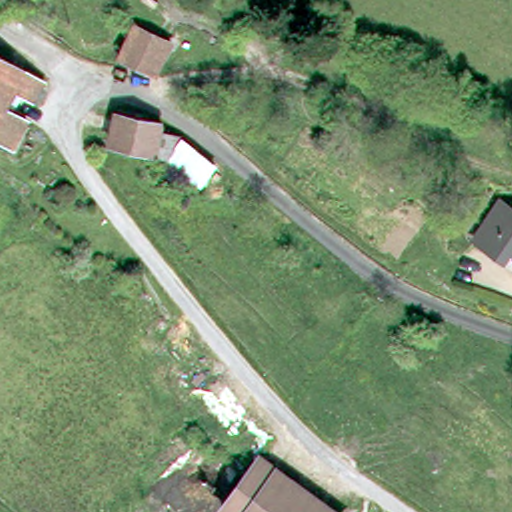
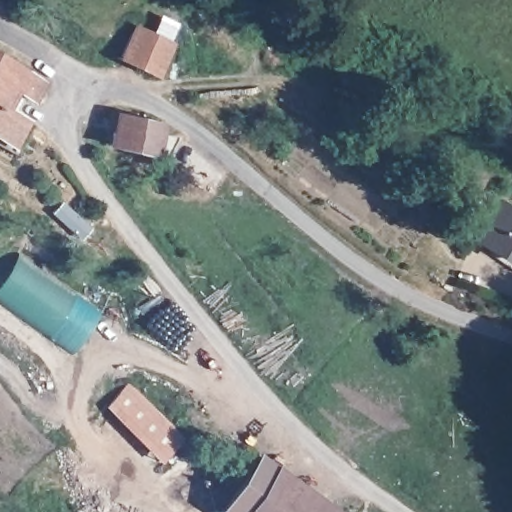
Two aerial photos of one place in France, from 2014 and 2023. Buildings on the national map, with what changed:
unchanged [(163,41),(147,72),(115,56),(132,24),(163,41)]
unchanged [(29,93),(11,84),(1,104),(25,117),(8,148),(0,144),(0,52),(39,74),(29,93)]
unchanged [(166,131),(161,156),(148,154),(103,146),(105,140),(110,116),(153,123),(156,124),(166,131)]
unchanged [(474,235),(491,214),(505,197),(512,203),(512,266),(474,235)]
new [(99,309),(70,353),(0,310),(0,286),(18,258),(99,309)]
new [(183,439),(160,464),(106,409),(131,384),(183,439)]
unchanged [(244,457),(272,474),(245,512),(216,512),(211,509),(244,457)]
unchanged [(335,512),(245,512),(272,474),(335,512)]

